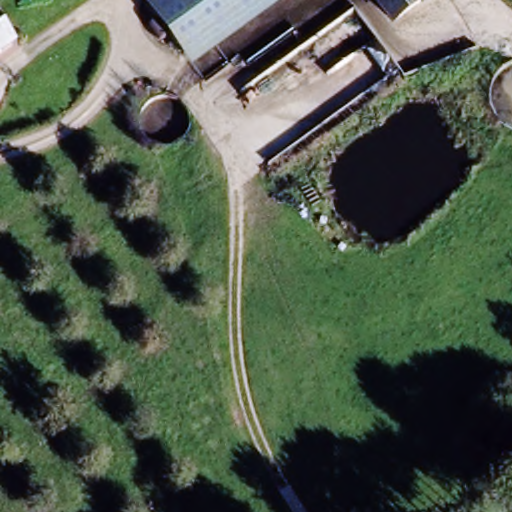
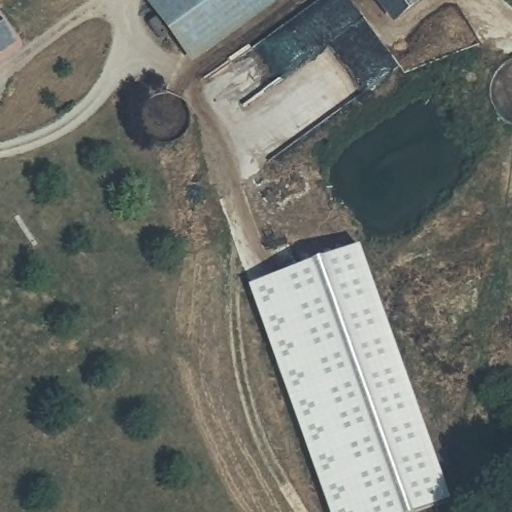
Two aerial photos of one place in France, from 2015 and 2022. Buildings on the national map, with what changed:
unchanged [(146,0),(252,0),(184,50),(146,0)]
unchanged [(196,67),(184,50),(252,0),(287,0),(196,67)]
unchanged [(392,25),(373,0),(414,0),(418,5),(392,25)]
unchanged [(418,5),(414,0),(424,0),(418,5)]
unchanged [(0,52),(0,30),(10,44),(0,52)]
new [(451,498),(415,512),(331,512),(251,282),(360,242),(451,498)]

